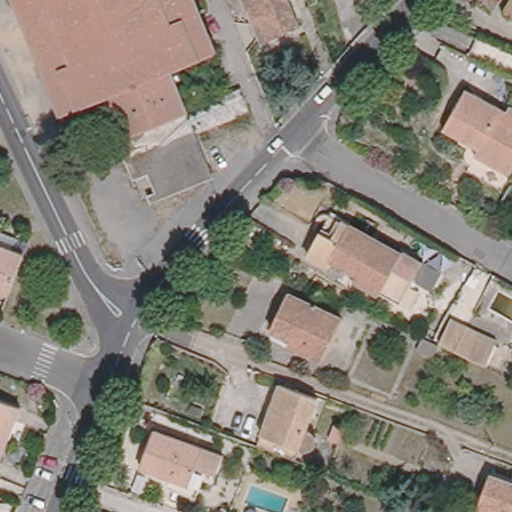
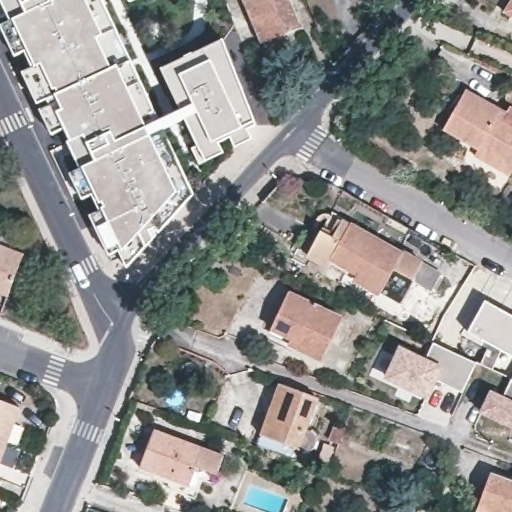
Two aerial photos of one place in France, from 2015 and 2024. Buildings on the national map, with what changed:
new [(126,265),(120,250),(110,254),(91,216),(102,211),(93,194),(82,197),(70,172),(79,167),(62,129),(51,132),(1,25),(12,22),(1,0),(101,0),(193,192),(126,265)]
demolished [(216,50),(170,67),(139,80),(107,93),(108,94),(65,110),(47,67),(24,12),(24,10),(19,0),(196,0),(216,50)]
unchanged [(298,24),(262,39),(246,0),(289,0),(298,24)]
unchanged [(507,0),(512,0),(512,16),(501,10),(507,0)]
new [(221,41),(258,126),(249,131),(253,141),(237,149),(232,138),(221,143),(226,154),(207,161),(164,70),(221,41)]
demolished [(139,80),(170,66),(170,67),(187,109),(188,112),(126,137),(108,94),(139,80)]
unchanged [(444,129),(464,88),(506,110),(502,120),(512,125),(512,171),(512,172),(476,154),(479,147),(460,137),(444,129)]
demolished [(61,157),(52,140),(64,134),(73,152),(61,157)]
unchanged [(431,265),(422,283),(406,275),(403,280),(396,277),(385,297),(340,272),(342,267),(319,254),(314,261),(293,250),(306,225),(318,230),(328,213),(336,217),(386,246),(389,242),(431,265)]
unchanged [(0,242),(29,252),(12,295),(0,291),(0,242)]
unchanged [(288,293),(341,319),(323,357),(296,343),(298,338),(272,326),(288,293)]
new [(480,362),(491,343),(469,331),(487,300),(501,308),(500,310),(512,318),(512,356),(502,350),(492,368),(480,362)]
demolished [(494,346),(485,365),(441,344),(453,319),(475,330),(474,336),(494,346)]
new [(478,361),(463,391),(438,380),(430,400),(383,379),(400,345),(425,357),(435,341),(478,361)]
demolished [(440,346),(453,352),(447,363),(435,358),(440,346)]
new [(479,411),(490,390),(502,395),(510,377),(511,377),(512,378),(512,426),(479,411)]
unchanged [(315,397),(303,428),(308,431),(311,435),(312,439),(311,442),(309,445),(307,447),(304,448),(299,447),(257,432),(275,383),(315,397)]
unchanged [(0,430),(0,392),(26,401),(14,435),(0,430)]
unchanged [(222,471),(203,465),(195,484),(146,465),(159,428),(228,454),(222,471)]
unchanged [(0,430),(14,435),(0,470),(0,430)]
unchanged [(512,480),(512,512),(481,512),(477,510),(491,472),(512,480)]

